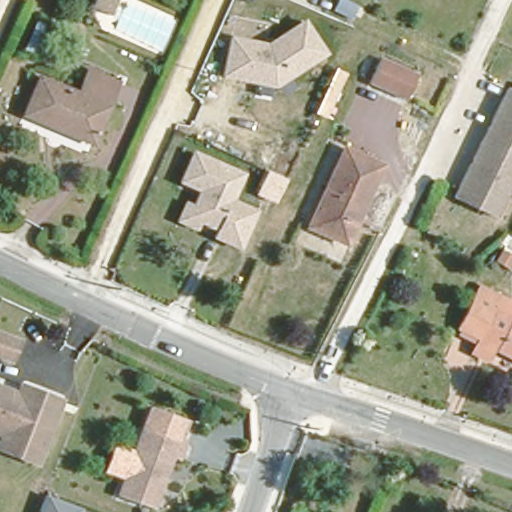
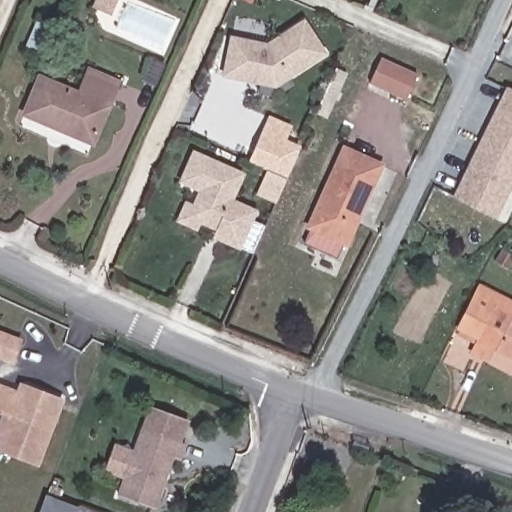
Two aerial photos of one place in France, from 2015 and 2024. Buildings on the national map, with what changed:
unchanged [(83,4),(84,0),(104,0),(99,11),(83,4)]
unchanged [(278,87),(221,77),(231,34),(267,42),(303,19),(327,54),(278,87)]
unchanged [(379,54),(418,71),(415,78),(406,97),(367,80),(376,61),(379,54)]
unchanged [(36,78),(75,95),(85,72),(113,84),(87,143),(21,114),(36,78)]
unchanged [(494,222),(453,203),(502,94),(512,98),(512,180),(494,222)]
new [(276,204),(256,195),(267,170),(249,161),(268,118),(290,127),(286,138),(301,145),(287,178),(276,204)]
unchanged [(343,241),(308,225),(343,147),(378,162),(343,241)]
unchanged [(240,252),(213,240),(217,232),(199,224),(195,232),(175,224),(184,202),(191,206),(198,191),(176,182),(190,150),(245,172),(234,200),(258,209),(240,252)]
unchanged [(472,350),(479,334),(461,326),(481,283),(512,298),(512,355),(497,348),(492,360),(472,350)]
unchanged [(8,364),(0,361),(0,341),(14,346),(8,364)]
unchanged [(0,438),(0,393),(17,400),(21,392),(59,407),(33,470),(10,461),(0,457),(0,445),(3,439),(0,438)]
unchanged [(138,432),(148,404),(192,420),(182,448),(138,432)]
unchanged [(182,448),(178,465),(170,463),(151,510),(115,497),(138,432),(182,448)]
unchanged [(80,512),(38,512),(45,493),(82,507),(80,512)]

